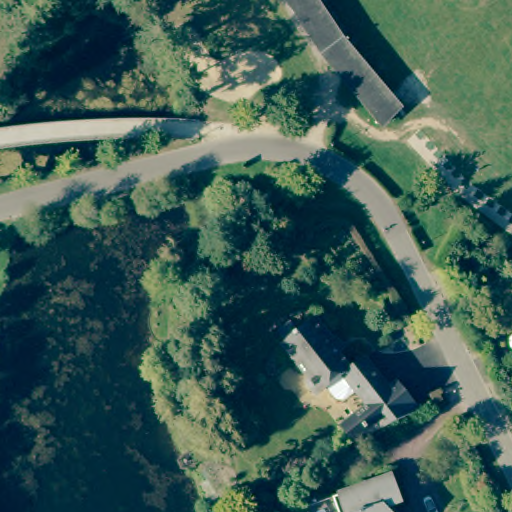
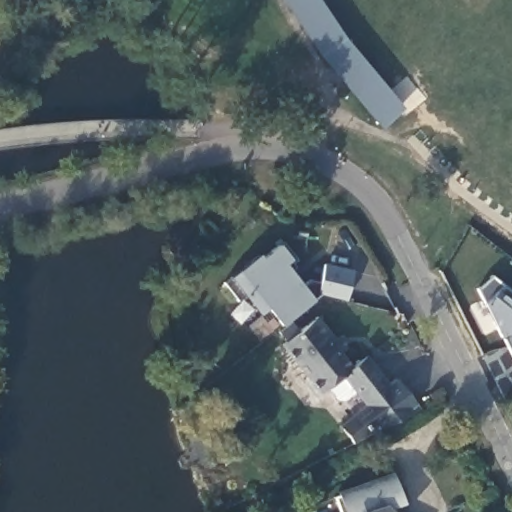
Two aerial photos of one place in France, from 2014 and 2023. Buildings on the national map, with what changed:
unchanged [(341,36),(402,108),(381,129),(338,80),(295,21),(284,0),(317,0),(320,6),(341,36)]
new [(280,327),(266,309),(258,315),(229,277),(260,254),(262,257),(278,245),(290,260),(284,265),(301,285),(309,279),(319,281),(321,262),(351,267),(347,300),(320,295),(313,300),(288,321),(280,327)]
new [(484,304),(477,288),(492,275),(512,293),(512,360),(484,304)]
unchanged [(331,431),(345,420),(358,410),(347,396),(339,402),(332,401),(323,390),(322,391),(313,387),(279,344),(285,339),(277,330),(288,321),(296,331),(315,316),(330,335),(328,338),(351,367),(365,356),(387,384),(389,387),(397,381),(419,409),(390,424),(371,434),(360,439),(344,447),(331,431)]
unchanged [(332,498),(390,478),(402,500),(389,506),(393,512),(339,512),(332,498)]

